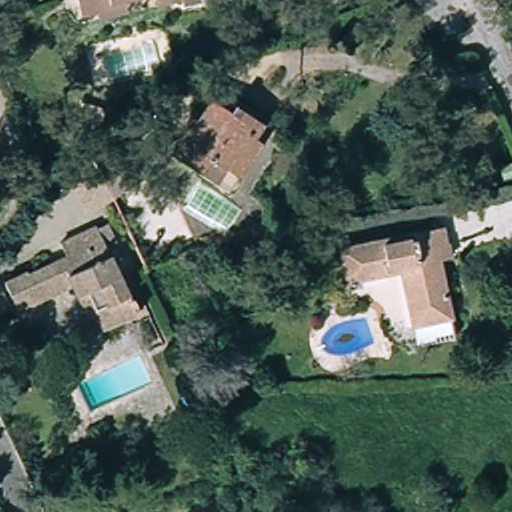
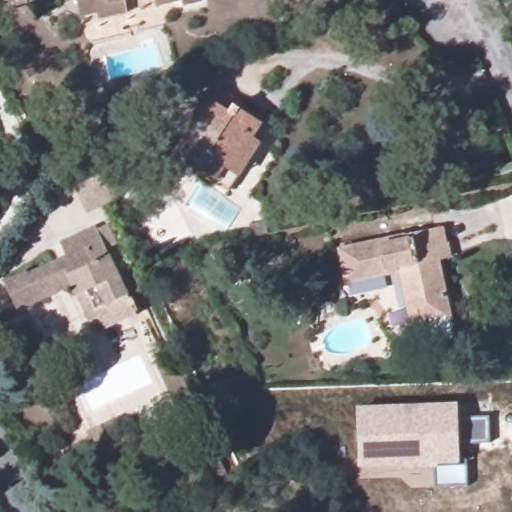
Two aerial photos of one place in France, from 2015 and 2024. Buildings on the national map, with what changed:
unchanged [(105,9),(104,5),(92,7),(93,15),(75,19),(71,0),(146,0),(105,9)]
unchanged [(150,5),(149,0),(194,0),(195,5),(180,9),(178,5),(165,8),(151,11),(150,5)]
unchanged [(160,184),(151,168),(172,160),(216,91),(261,119),(248,140),(257,147),(227,196),(217,189),(190,171),(175,193),(160,184)]
unchanged [(108,144),(87,139),(92,123),(112,128),(108,144)]
unchanged [(67,292),(63,285),(14,310),(0,283),(0,282),(22,270),(25,274),(61,255),(53,239),(87,222),(122,290),(126,288),(134,302),(130,304),(132,308),(98,325),(89,330),(67,292)]
unchanged [(406,307),(397,267),(342,278),(335,245),(438,225),(440,241),(446,240),(448,253),(435,256),(447,313),(426,317),(409,320),(406,307)]
unchanged [(267,247),(252,250),(250,237),(263,234),(267,247)]
new [(458,402),(458,418),(489,416),(490,444),(460,446),(461,465),(441,466),(441,473),(407,475),(407,466),(359,468),(357,406),(458,402)]
unchanged [(203,500),(206,512),(193,512),(191,504),(203,500)]

